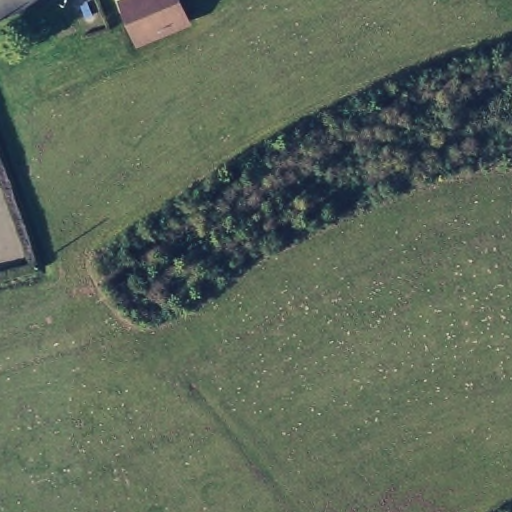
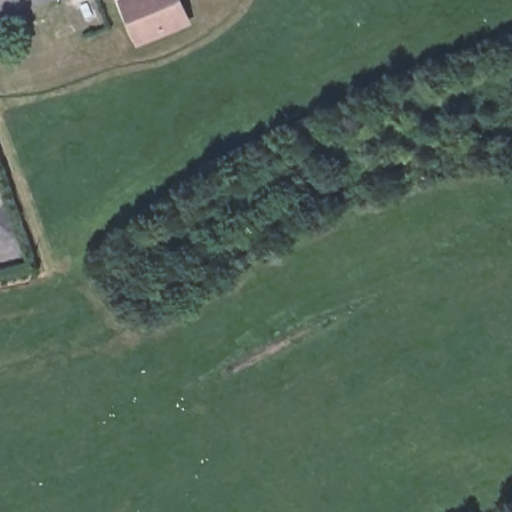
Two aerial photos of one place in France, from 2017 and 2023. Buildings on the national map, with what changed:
unchanged [(176,0),(185,18),(139,38),(123,2),(128,0),(176,0)]
unchanged [(36,88),(40,102),(19,110),(14,93),(36,88)]

